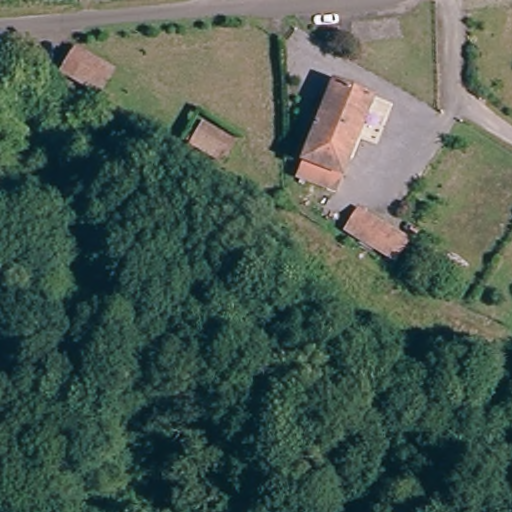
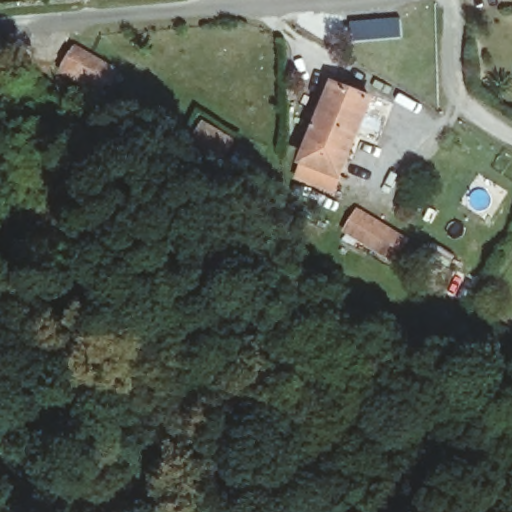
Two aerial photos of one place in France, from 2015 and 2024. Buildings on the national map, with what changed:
unchanged [(79,46),(116,70),(98,97),(61,72),(79,46)]
unchanged [(370,99),(339,192),(302,178),(333,85),(370,99)]
unchanged [(203,122),(237,142),(223,166),(187,145),(203,122)]
unchanged [(407,246),(399,261),(398,264),(349,235),(359,218),(407,246)]

